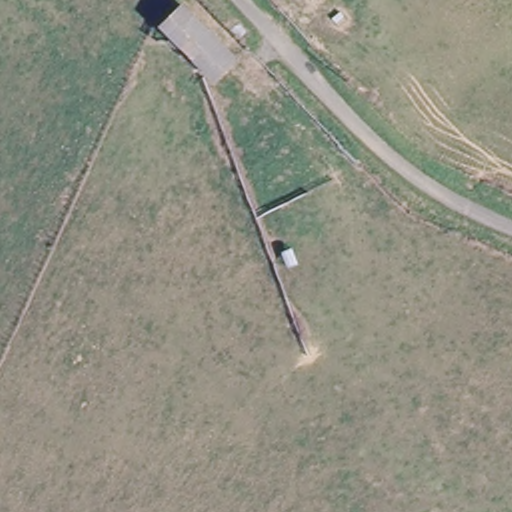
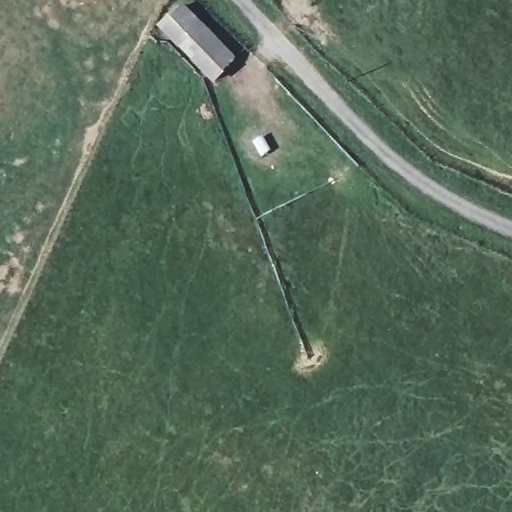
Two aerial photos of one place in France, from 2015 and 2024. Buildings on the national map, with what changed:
unchanged [(228,62),(206,82),(155,30),(178,10),(228,62)]

